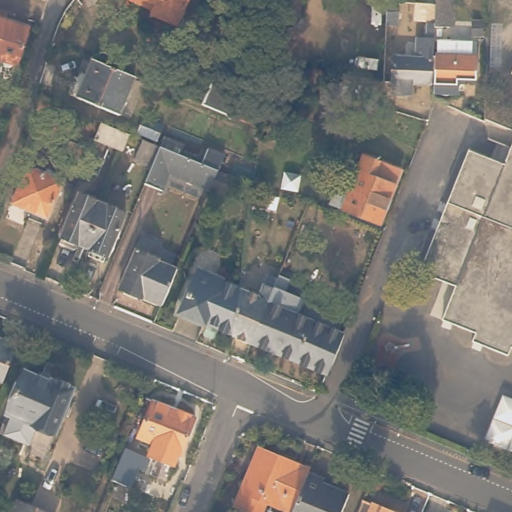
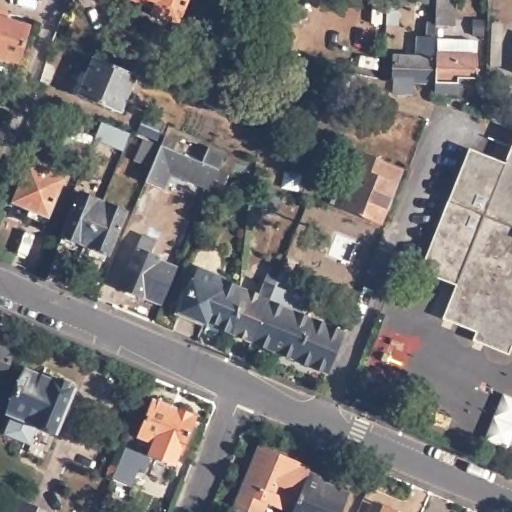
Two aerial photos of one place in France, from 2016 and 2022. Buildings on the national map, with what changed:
unchanged [(159,17),(151,14),(155,3),(148,0),(184,0),(174,24),(159,17)]
unchanged [(299,25),(278,23),(280,0),(301,0),(300,2),(299,25)]
unchanged [(398,10),(397,25),(386,24),(386,0),(395,0),(394,10),(398,10)]
unchanged [(429,71),(428,89),(411,89),(411,101),(394,100),(394,87),(392,87),(394,61),(415,60),(416,43),(426,43),(427,31),(430,31),(430,24),(434,24),(436,7),(436,0),(451,0),(449,32),(434,32),(433,58),(433,70),(429,71)]
unchanged [(9,18),(34,26),(22,64),(0,58),(0,6),(11,10),(9,18)]
unchanged [(483,26),(482,41),(472,41),(472,26),(483,26)]
unchanged [(471,62),(476,62),(474,84),(458,84),(457,99),(434,98),(436,61),(437,61),(437,46),(451,46),(471,47),(471,62)]
unchanged [(110,66),(137,77),(121,114),(80,97),(94,60),(110,66)]
unchanged [(247,79),(234,116),(234,117),(205,105),(220,68),(247,79)]
unchanged [(383,86),(382,112),(382,116),(339,105),(344,78),(383,86)]
unchanged [(164,125),(159,139),(140,131),(146,117),(164,125)]
unchanged [(130,134),(124,150),(95,138),(101,122),(130,134)]
unchanged [(202,164),(208,150),(224,156),(219,171),(210,190),(169,172),(160,190),(145,184),(149,177),(151,169),(138,163),(145,140),(161,147),(164,147),(168,138),(187,146),(183,156),(200,164),(202,164)]
unchanged [(507,347),(504,353),(471,341),(474,332),(441,320),(453,287),(418,273),(469,151),(504,165),(512,147),(512,348),(507,347)]
unchanged [(403,171),(383,222),(324,201),(338,164),(349,167),(356,154),(403,171)]
unchanged [(63,179),(44,222),(26,216),(29,208),(14,202),(29,165),(63,179)]
unchanged [(83,247),(76,244),(74,250),(59,244),(61,237),(59,236),(79,192),(102,202),(83,247)]
unchanged [(102,202),(128,212),(110,255),(109,255),(104,263),(86,255),(89,249),(83,247),(102,202)]
unchanged [(156,247),(150,262),(177,273),(176,276),(161,312),(161,311),(119,293),(139,240),(156,247)]
unchanged [(199,273),(222,282),(220,291),(240,293),(234,340),(233,340),(180,318),(199,273)]
unchanged [(279,282),(288,286),(287,288),(308,297),(299,318),(344,337),(335,361),(328,377),(253,347),(275,290),(279,282)]
unchanged [(234,340),(240,293),(257,300),(263,285),(275,290),(253,347),(234,340)]
unchanged [(0,370),(0,334),(13,340),(0,370)]
unchanged [(51,378),(53,377),(72,385),(52,430),(5,410),(24,366),(51,378)]
unchanged [(512,398),(512,451),(483,440),(501,393),(512,398)]
unchanged [(195,412),(180,451),(178,450),(173,462),(149,452),(154,440),(139,433),(154,396),(195,412)]
unchanged [(44,449),(0,430),(0,421),(5,410),(52,430),(44,449)]
unchanged [(148,454),(143,467),(136,464),(129,483),(110,476),(123,447),(124,444),(148,454)]
unchanged [(290,512),(272,512),(260,507),(259,512),(236,512),(233,511),(254,455),(305,476),(304,478),(290,512)]
unchanged [(304,478),(319,485),(319,488),(344,499),(338,512),(290,512),(304,478)]
unchanged [(16,502),(40,512),(12,512),(16,502)]
unchanged [(372,507),(387,512),(370,512),(372,507)]

